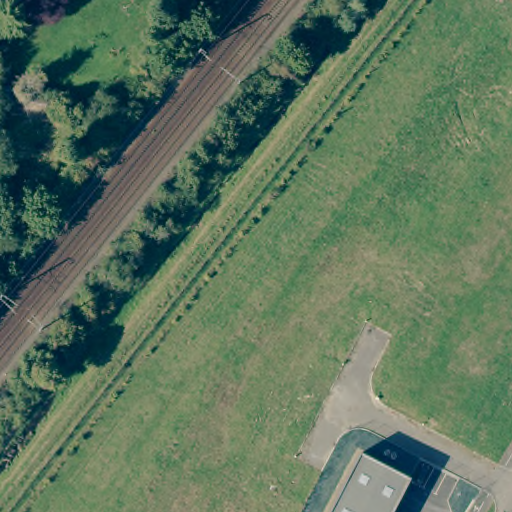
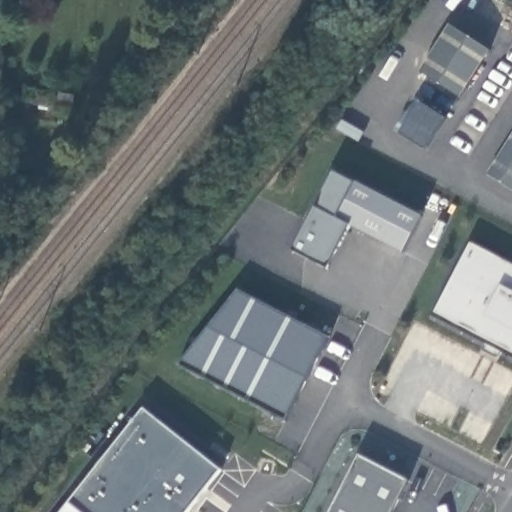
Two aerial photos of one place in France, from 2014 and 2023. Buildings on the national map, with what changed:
new [(488,51),(457,100),(417,77),(449,25),(488,51)]
unchanged [(94,103),(60,100),(61,86),(96,90),(94,103)]
new [(446,120),(426,149),(401,135),(420,104),(446,120)]
new [(512,190),(486,174),(512,133),(512,190)]
new [(354,183),(421,219),(402,254),(350,227),(328,268),(294,250),(316,208),(334,172),(354,183)]
new [(512,353),(435,315),(471,242),(512,265),(512,353)]
new [(238,290),(327,336),(285,420),(177,365),(238,290)]
new [(141,411),(220,472),(189,512),(73,512),(67,507),(141,411)]
unchanged [(358,454),(408,481),(392,512),(328,512),(358,454)]

